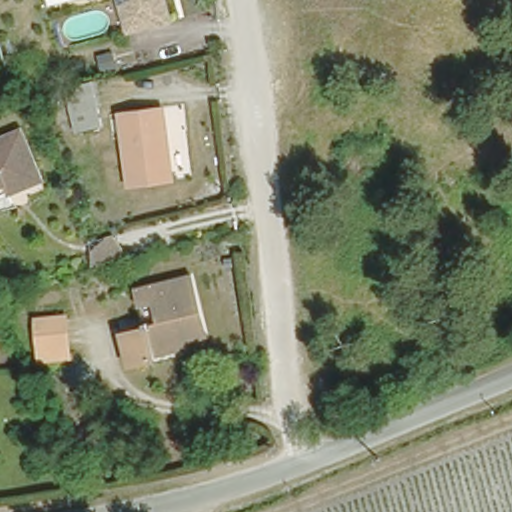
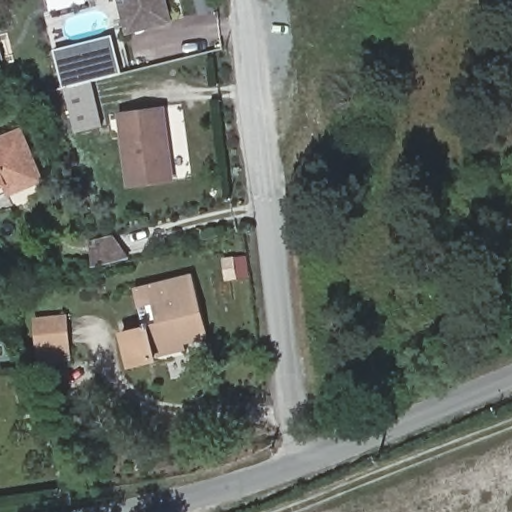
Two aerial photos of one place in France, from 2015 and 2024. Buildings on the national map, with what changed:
new [(48,5),(46,0),(70,0),(48,5)]
unchanged [(166,10),(125,20),(120,0),(163,0),(166,10)]
new [(113,35),(122,73),(89,80),(63,86),(54,49),(113,35)]
unchanged [(89,80),(101,121),(74,130),(63,86),(89,80)]
unchanged [(122,179),(116,109),(151,105),(159,104),(163,144),(166,174),(122,179)]
unchanged [(0,138),(8,135),(18,131),(32,171),(24,175),(0,183),(0,138)]
unchanged [(114,241),(119,263),(97,268),(91,247),(114,241)]
unchanged [(146,362),(132,367),(123,337),(139,332),(136,320),(151,315),(146,301),(132,305),(128,292),(187,276),(204,335),(178,342),(181,351),(146,362)]
unchanged [(55,320),(61,356),(33,362),(27,325),(55,320)]

